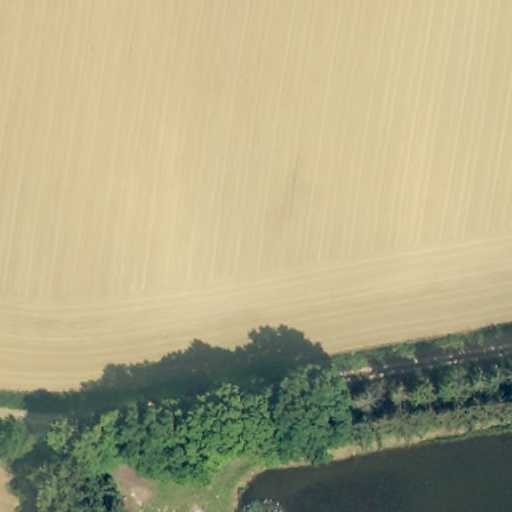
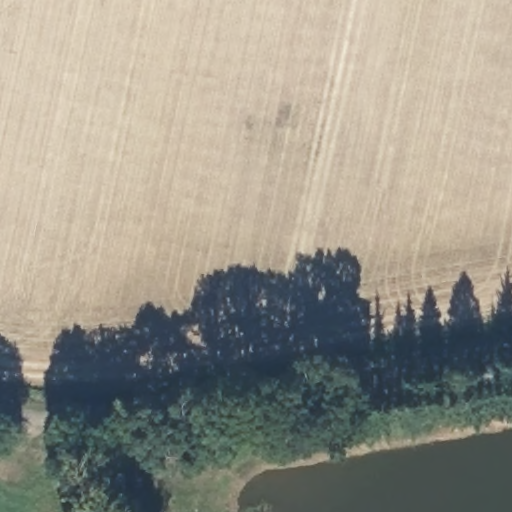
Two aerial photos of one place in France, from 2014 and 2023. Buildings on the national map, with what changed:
unchanged [(213,450),(180,456),(177,438),(213,430),(213,450)]

